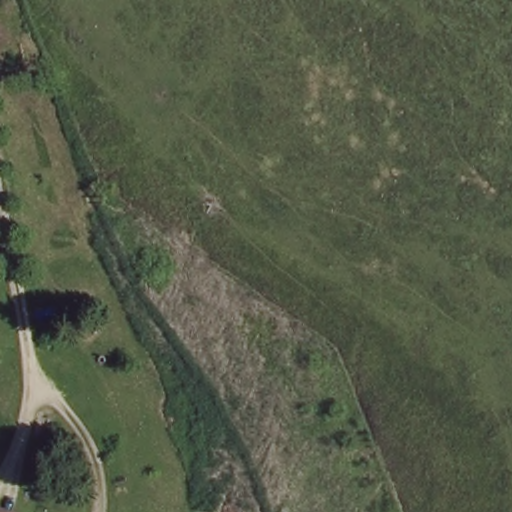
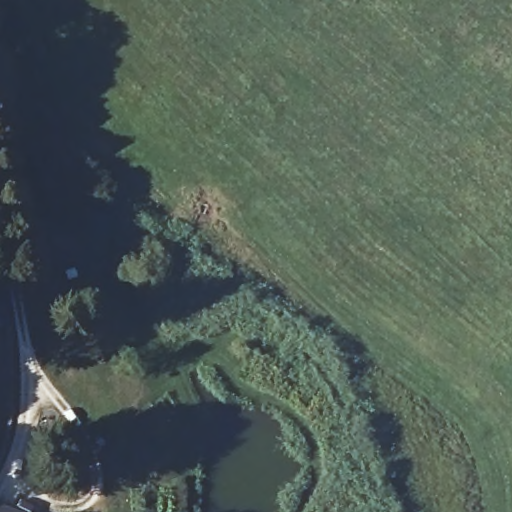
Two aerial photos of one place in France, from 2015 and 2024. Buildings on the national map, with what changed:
unchanged [(17,512),(0,512),(0,501),(18,507),(17,512)]

